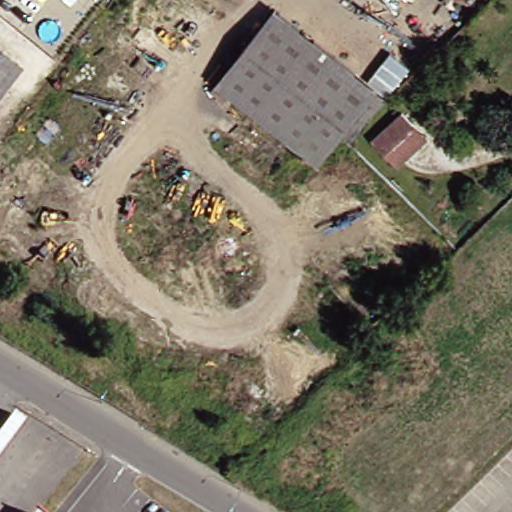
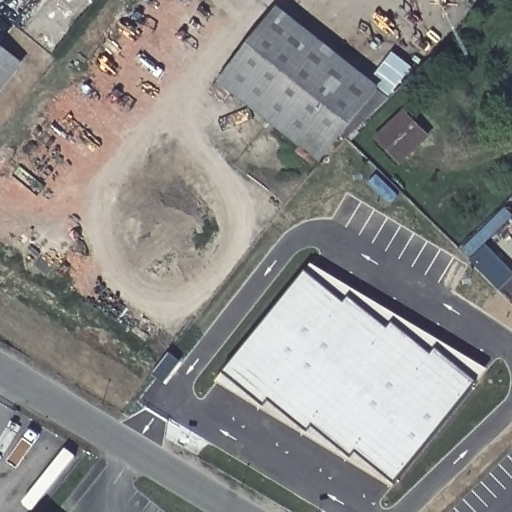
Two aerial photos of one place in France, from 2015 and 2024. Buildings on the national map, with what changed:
unchanged [(275,4),(389,94),(344,135),(341,132),(320,158),(218,77),(275,4)]
unchanged [(0,74),(0,44),(14,56),(0,74)]
unchanged [(426,137),(416,146),(399,164),(375,139),(402,113),(412,124),(426,137)]
new [(394,483),(356,452),(351,458),(313,427),(307,433),(269,401),(264,407),(223,372),(305,272),(343,305),(349,298),(387,331),(392,324),(431,356),(436,350),(475,384),(394,483)]

